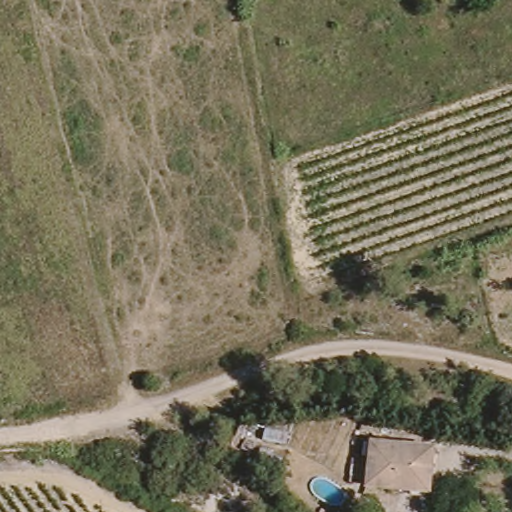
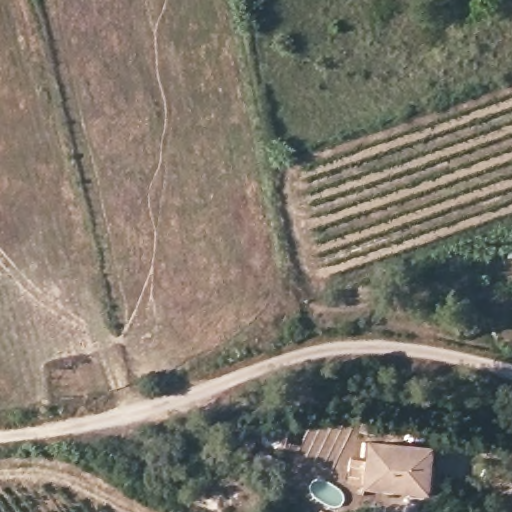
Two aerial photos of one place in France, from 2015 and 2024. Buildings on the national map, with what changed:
unchanged [(287,443),(264,437),(270,415),(294,416),(287,443)]
unchanged [(378,439),(435,446),(431,492),(374,485),(375,481),(358,479),(360,456),(376,458),(378,439)]

